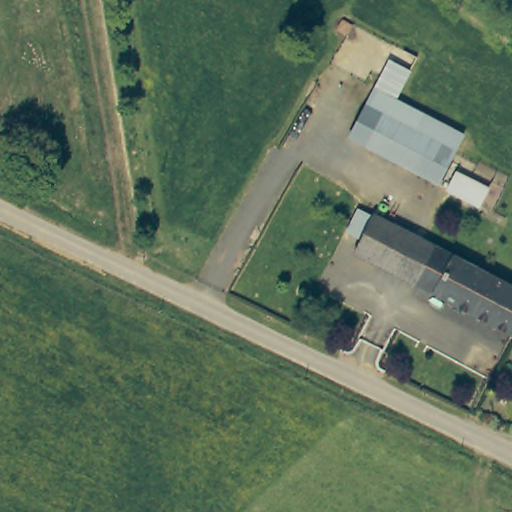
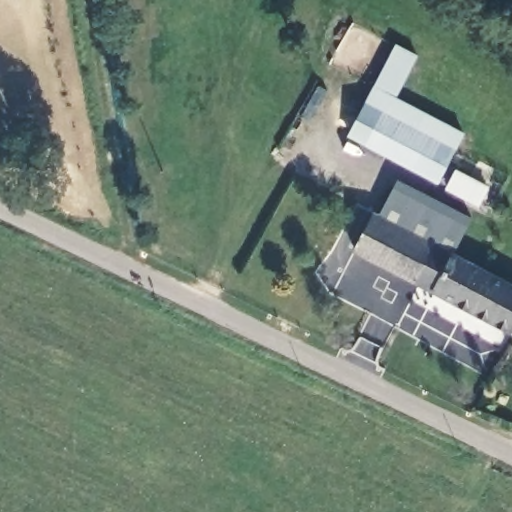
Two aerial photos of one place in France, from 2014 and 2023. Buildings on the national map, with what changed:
unchanged [(346,133),(385,56),(405,67),(391,95),(460,130),(435,178),(346,133)]
unchanged [(477,198),(474,197),(445,183),(446,182),(453,165),(486,180),(485,182),(484,184),(477,198)]
new [(380,217),(398,181),(473,217),(454,254),(380,217)]
unchanged [(367,255),(374,242),(359,236),(371,212),(489,272),(512,284),(512,331),(367,255)]

